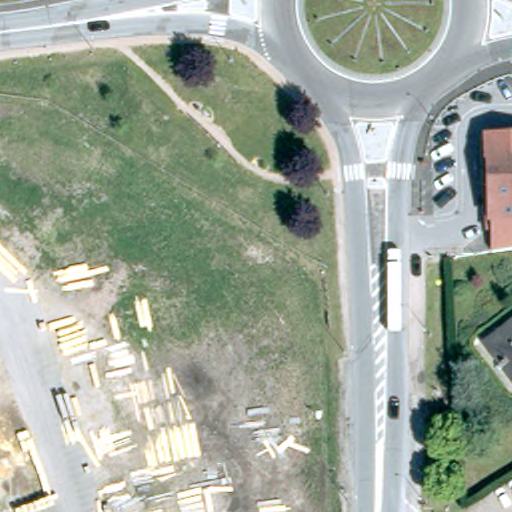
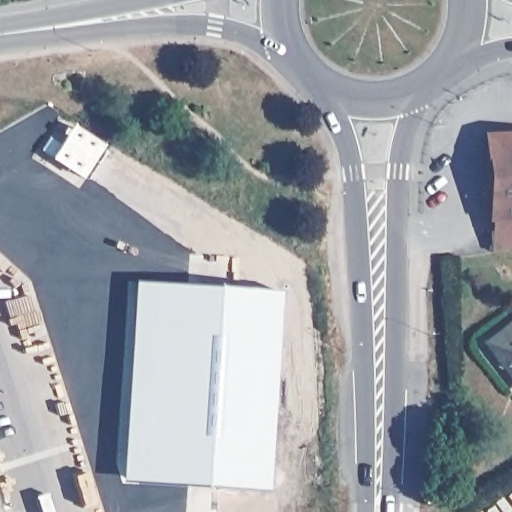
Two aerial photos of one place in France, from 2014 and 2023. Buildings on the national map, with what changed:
new [(52,138),(63,144),(75,126),(105,146),(84,177),(44,150),(52,138)]
unchanged [(492,250),(490,223),(487,224),(485,161),(482,161),(481,131),(512,131),(512,247),(492,250)]
new [(145,282),(269,292),(252,493),(128,482),(145,282)]
unchanged [(492,349),(500,343),(512,334),(512,376),(492,349)]

